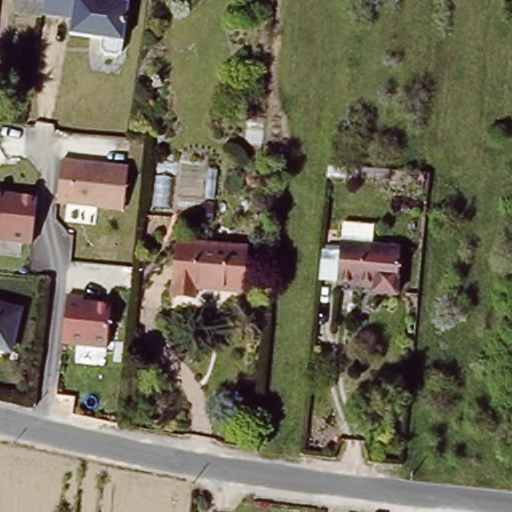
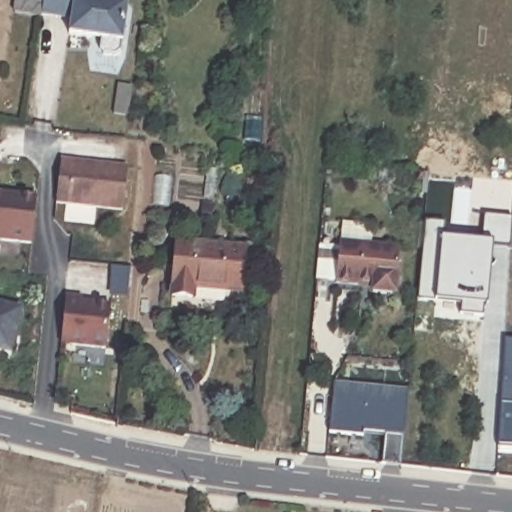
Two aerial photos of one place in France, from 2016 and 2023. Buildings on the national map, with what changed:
unchanged [(127,3),(123,43),(120,55),(113,59),(105,58),(100,53),(101,40),(70,35),(71,17),(45,12),(20,9),(21,0),(109,0),(127,3)]
unchanged [(127,163),(123,207),(56,201),(60,155),(127,163)]
unchanged [(38,198),(32,246),(0,242),(0,193),(38,198)]
new [(486,305),(483,315),(462,314),(465,304),(436,302),(418,300),(425,220),(447,222),(447,237),(485,240),(485,214),(512,217),(512,245),(492,245),(486,305)]
unchanged [(242,288),(195,285),(195,295),(173,293),(178,242),(245,248),(242,288)]
unchanged [(376,292),(376,286),(340,283),(342,244),(401,249),(398,294),(376,292)]
unchanged [(67,299),(114,304),(108,348),(63,343),(67,299)]
unchanged [(15,352),(0,348),(0,307),(25,313),(15,352)]
new [(505,340),(512,340),(512,448),(500,446),(505,340)]
new [(382,464),(385,437),(365,435),(365,438),(330,435),(335,381),(410,389),(402,466),(382,464)]

